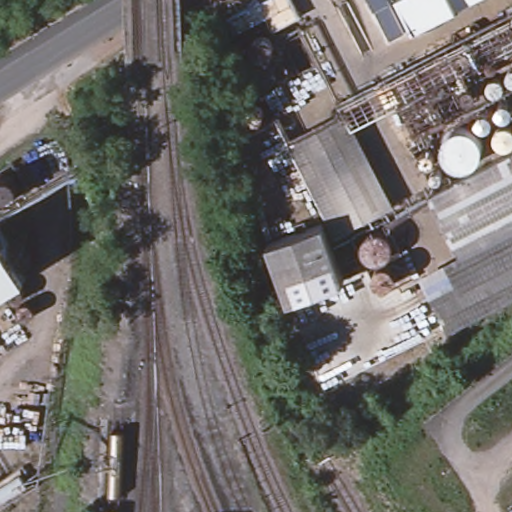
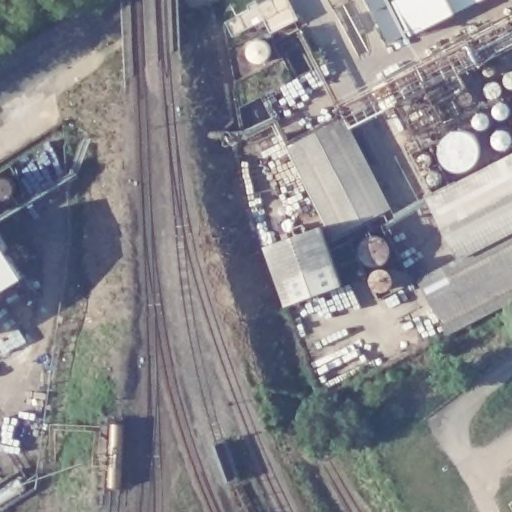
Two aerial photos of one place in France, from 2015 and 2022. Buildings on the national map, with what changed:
unchanged [(302,19),(273,34),(266,21),(237,35),(230,20),(269,0),(293,0),(302,19)]
unchanged [(418,38),(396,0),(492,0),(418,38)]
unchanged [(472,90),(442,105),(447,117),(416,133),(398,99),(461,68),(472,90)]
unchanged [(363,150),(390,205),(362,220),(328,238),(285,150),(346,116),(363,150)]
unchanged [(41,188),(0,211),(0,171),(21,158),(41,188)]
unchanged [(512,160),(512,308),(448,340),(423,289),(460,271),(428,204),(512,160)]
unchanged [(344,288),(285,303),(266,252),(263,244),(265,243),(320,226),(344,288)]
unchanged [(0,228),(35,276),(0,300),(0,228)]

